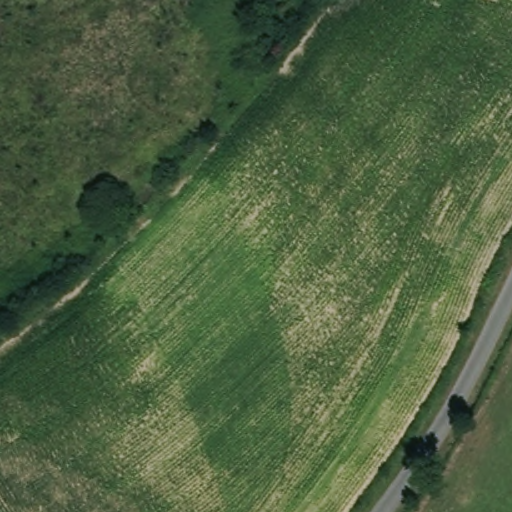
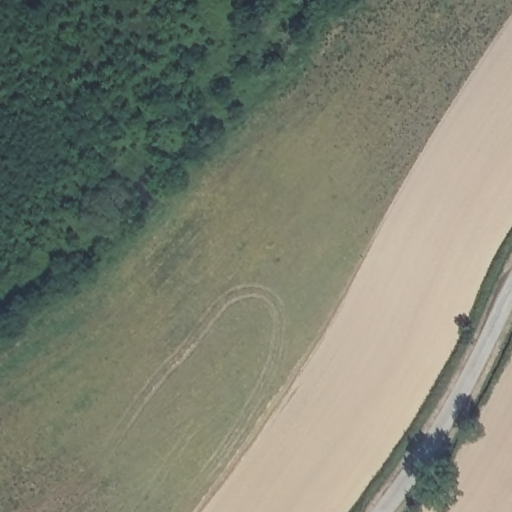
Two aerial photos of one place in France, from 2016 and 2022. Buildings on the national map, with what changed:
[]

